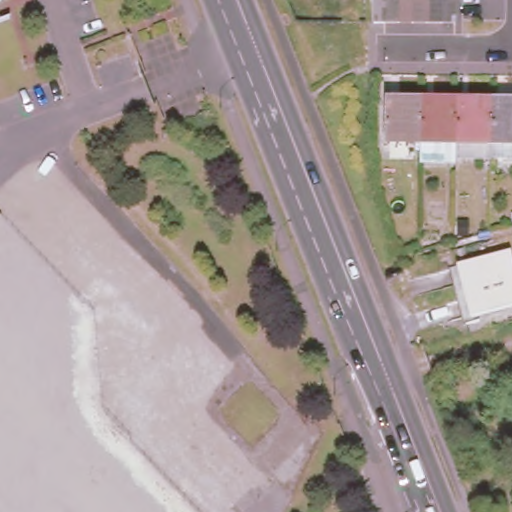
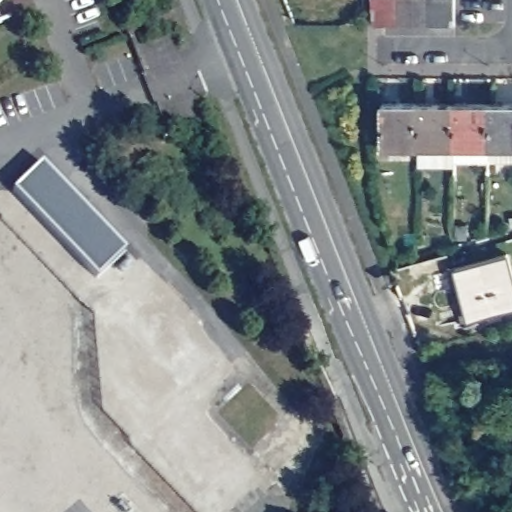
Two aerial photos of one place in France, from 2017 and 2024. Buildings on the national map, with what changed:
unchanged [(439,25),(426,25),(411,25),(396,25),(381,25),(382,0),(453,0),(453,25),(439,25)]
unchanged [(1,24),(0,24),(0,13),(4,23),(1,24)]
unchanged [(381,99),(418,99),(417,140),(381,140),(381,99)]
unchanged [(417,140),(418,99),(454,99),(454,140),(449,140),(449,160),(422,160),(422,140),(417,140)]
unchanged [(454,99),(489,99),(489,140),(454,140),(454,99)]
unchanged [(489,140),(489,99),(512,99),(512,140),(489,140)]
new [(13,192),(38,167),(122,251),(96,276),(13,192)]
unchanged [(512,256),(512,257),(512,309),(469,321),(456,271),(512,256)]

